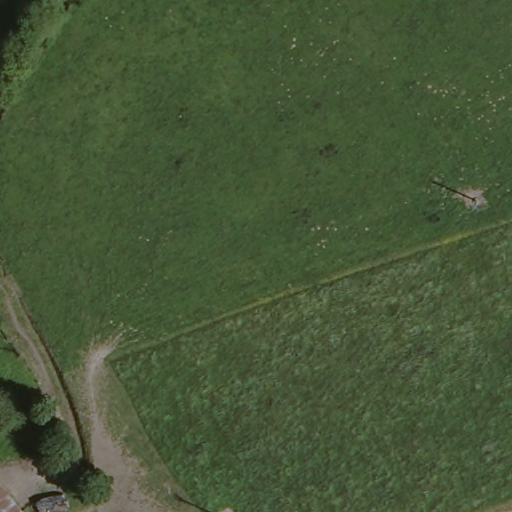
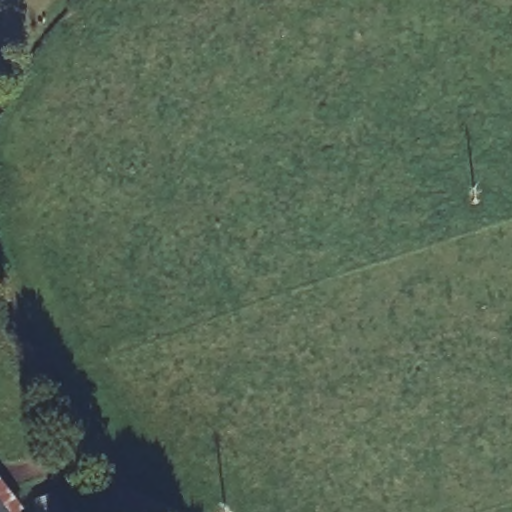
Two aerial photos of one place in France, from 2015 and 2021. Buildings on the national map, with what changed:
unchanged [(1,512),(0,512),(0,511),(1,512)]

